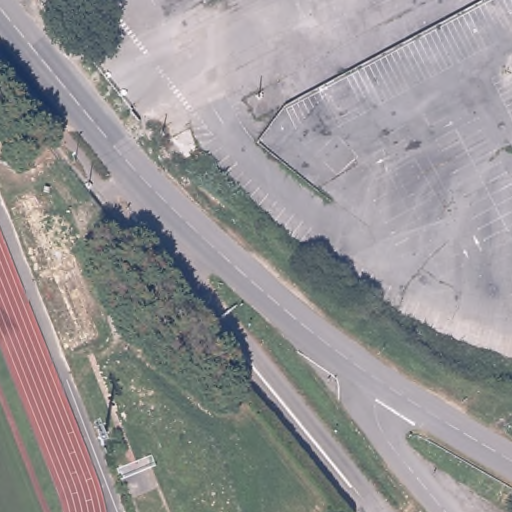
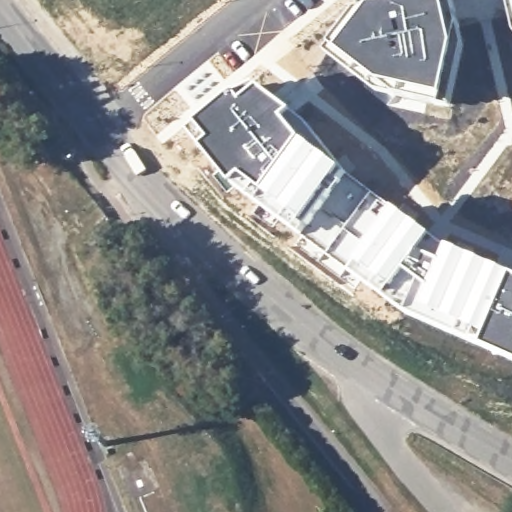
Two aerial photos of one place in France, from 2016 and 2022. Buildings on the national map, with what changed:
new [(395,96),(330,48),(368,0),(438,0),(463,6),(452,60),(443,106),(395,96)]
new [(410,317),(304,239),(237,189),(191,137),(226,103),(256,86),(312,127),(348,175),(450,250),(512,277),(512,361),(410,317)]

